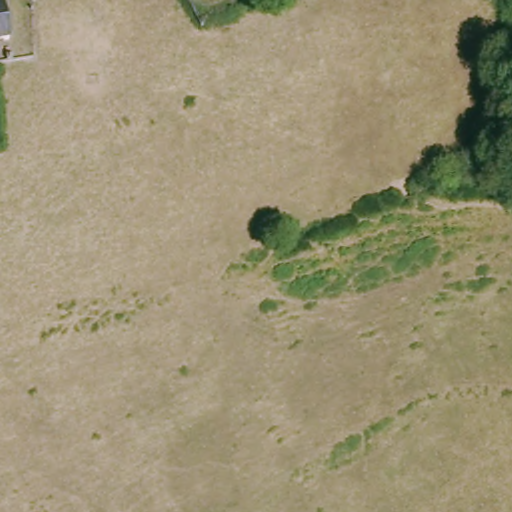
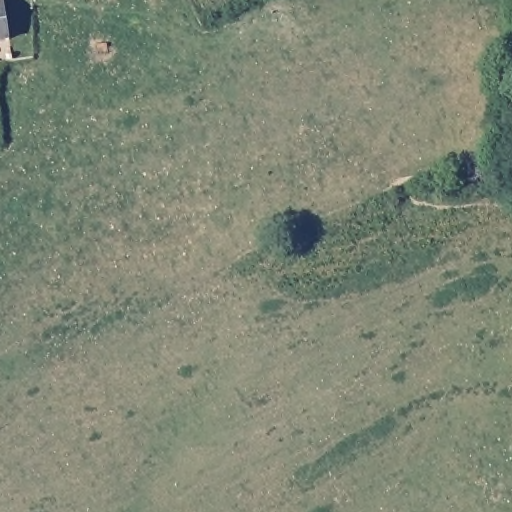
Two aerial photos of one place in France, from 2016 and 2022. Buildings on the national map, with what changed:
unchanged [(7,7),(12,41),(0,43),(0,0),(2,0),(3,6),(7,7)]

